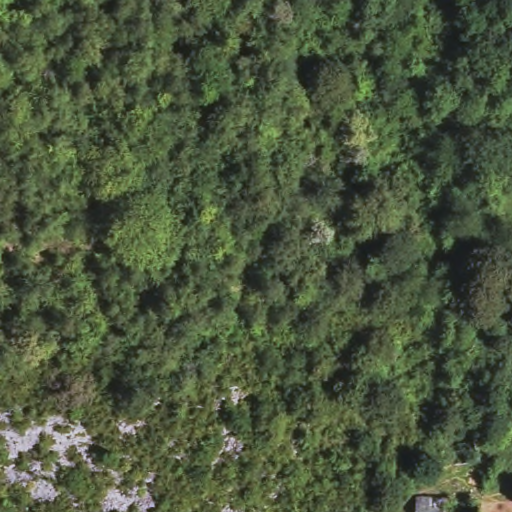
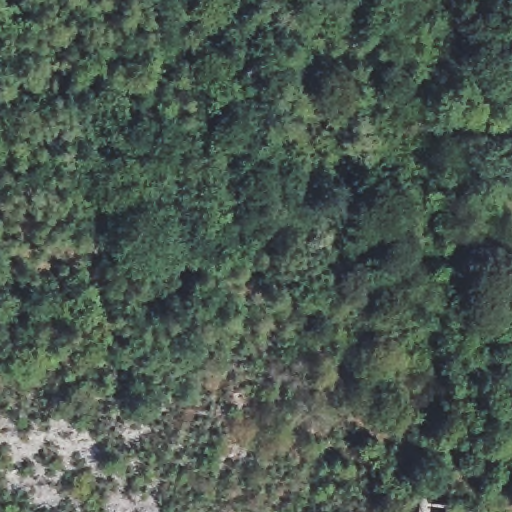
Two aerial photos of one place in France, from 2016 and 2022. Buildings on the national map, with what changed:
unchanged [(475,421),(481,460),(441,462),(438,425),(475,421)]
unchanged [(481,497),(478,512),(415,512),(416,495),(481,497)]

